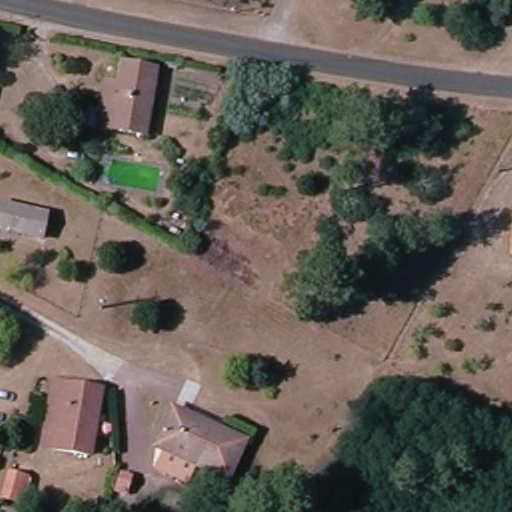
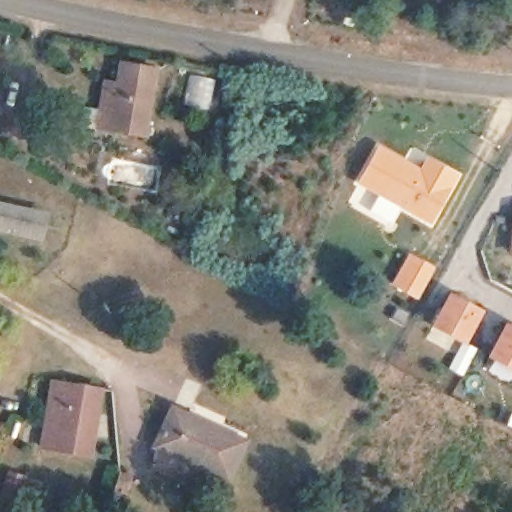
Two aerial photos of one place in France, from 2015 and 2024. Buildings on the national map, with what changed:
unchanged [(112,86),(117,69),(152,76),(136,140),(101,134),(107,111),(85,106),(91,83),(112,86)]
new [(360,182),(380,148),(422,172),(428,160),(456,175),(430,220),(360,182)]
unchanged [(0,231),(0,202),(56,213),(51,241),(0,231)]
demolished [(510,252),(512,219),(512,252),(510,252)]
new [(395,284),(410,257),(435,271),(419,298),(395,284)]
new [(466,343),(432,325),(450,290),(484,309),(466,343)]
demolished [(497,328),(512,302),(512,336),(497,328)]
new [(488,356),(506,322),(512,325),(512,369),(488,356)]
unchanged [(90,393),(76,454),(40,449),(52,386),(90,393)]
unchanged [(239,449),(217,486),(152,453),(173,415),(239,449)]

